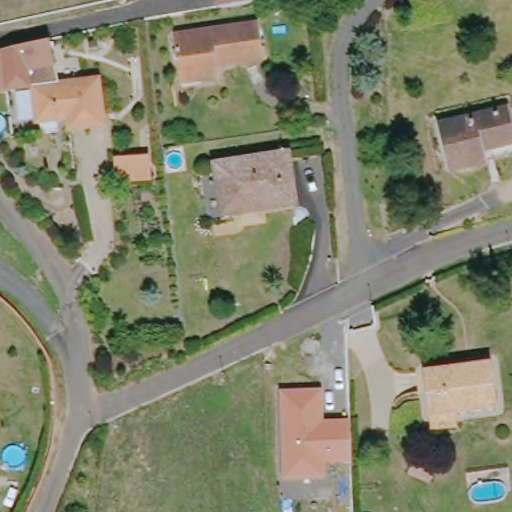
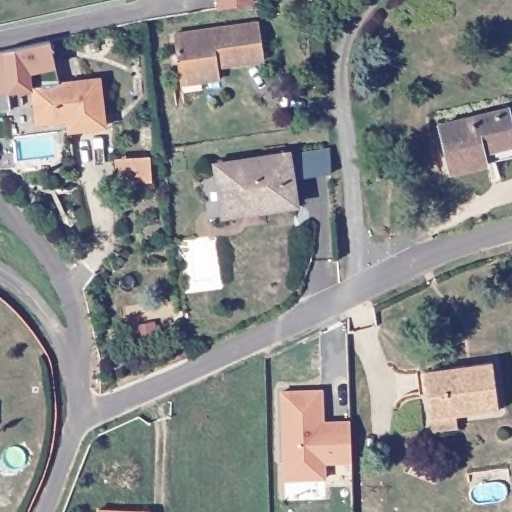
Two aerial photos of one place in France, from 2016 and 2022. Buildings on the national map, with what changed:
unchanged [(218,4),(217,0),(249,0),(218,4)]
unchanged [(172,84),(170,72),(177,72),(172,33),(258,22),(263,59),(228,64),(217,65),(218,78),(198,81),(179,83),(172,84)]
unchanged [(0,96),(0,56),(53,45),(61,86),(27,91),(0,96)]
unchanged [(64,134),(63,123),(32,127),(27,91),(83,83),(94,82),(100,129),(94,130),(64,134)]
unchanged [(505,107),(512,133),(512,140),(484,150),(487,161),(454,171),(441,126),(505,107)]
unchanged [(264,156),(287,153),(292,211),(218,217),(215,171),(264,166),(264,156)]
unchanged [(139,162),(139,184),(132,184),(101,184),(101,162),(128,162),(139,162)]
unchanged [(434,434),(432,421),(427,394),(420,395),(417,377),(425,376),(425,373),(492,362),(499,410),(457,417),(459,429),(434,434)]
unchanged [(280,390),(322,389),(323,420),(349,419),(350,462),(325,463),(326,480),(283,480),(280,390)]
new [(152,511),(152,512),(97,512),(97,509),(152,511)]

